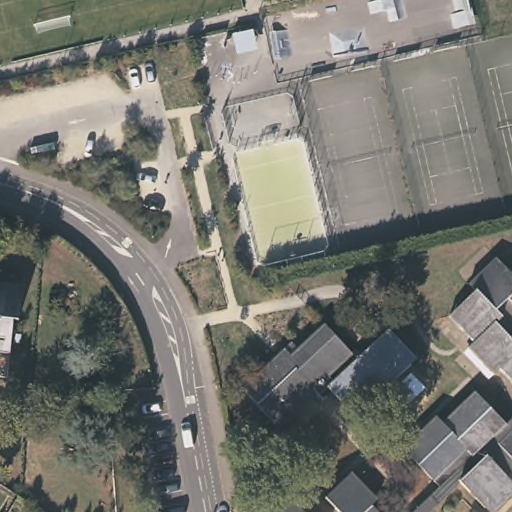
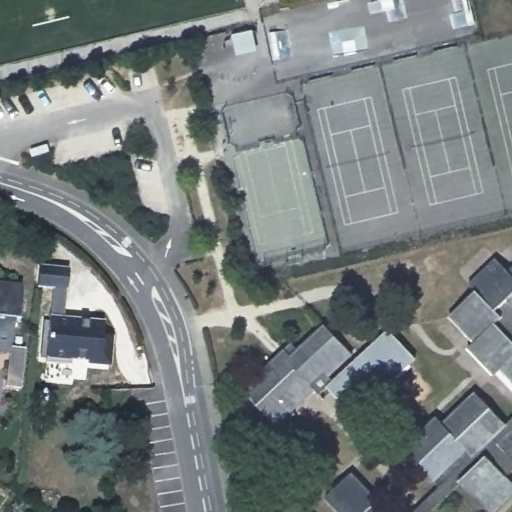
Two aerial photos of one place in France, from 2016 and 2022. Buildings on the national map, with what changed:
unchanged [(259,39),(250,41),(248,30),(257,27),(259,39)]
unchanged [(496,366),(489,372),(463,345),(470,338),(446,313),(471,288),(466,282),(491,257),(512,278),(512,381),(496,366)]
unchanged [(19,325),(13,323),(10,357),(0,357),(0,286),(23,288),(19,325)]
new [(46,315),(71,317),(70,323),(87,325),(87,322),(109,323),(106,352),(97,351),(96,364),(42,360),(46,315)]
unchanged [(299,346),(324,322),(354,354),(333,373),(337,378),(390,328),(417,357),(357,413),(331,385),(320,395),(314,390),(293,409),(295,411),(280,426),(243,387),(278,354),(286,346),(293,340),(299,346)]
unchanged [(434,485),(399,448),(432,415),(439,421),(471,390),(501,420),(512,410),(512,463),(501,474),(512,485),(512,486),(485,511),(456,481),(424,512),(406,512),(434,485)]
unchanged [(335,511),(321,496),(347,470),(372,497),(368,502),(377,512),(336,512),(335,511)]
unchanged [(286,495),(302,512),(269,512),(286,495)]

